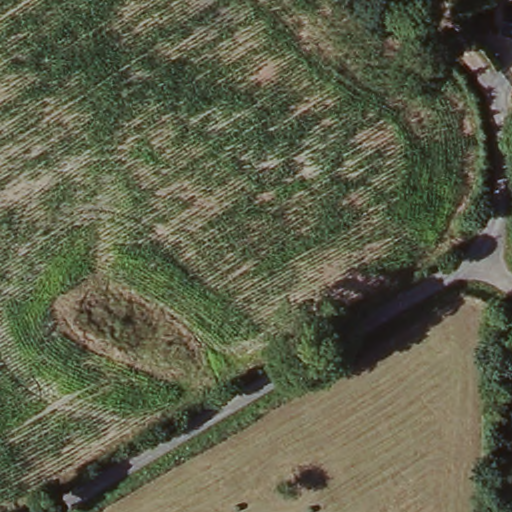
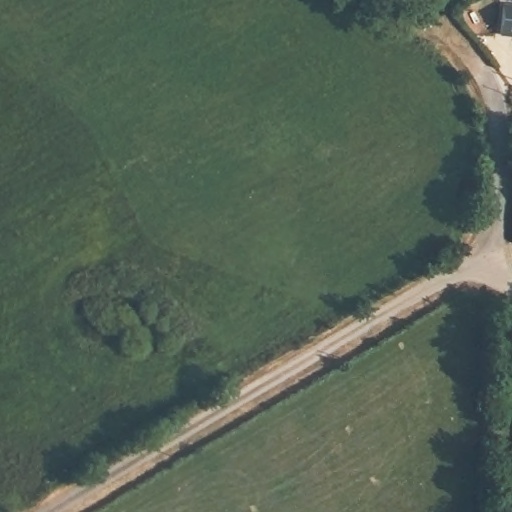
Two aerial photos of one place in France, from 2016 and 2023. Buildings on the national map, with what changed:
unchanged [(512,37),(507,36),(511,8),(512,8),(512,37)]

